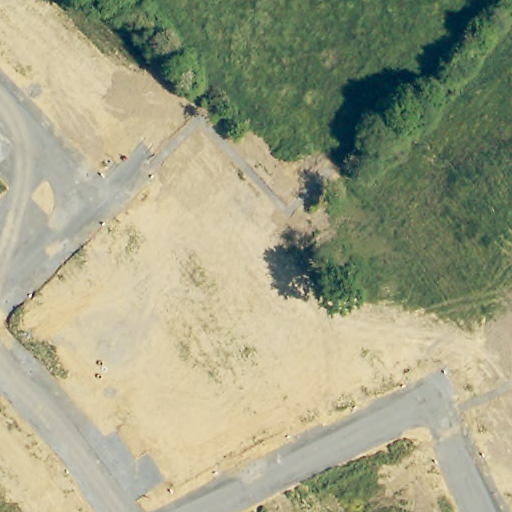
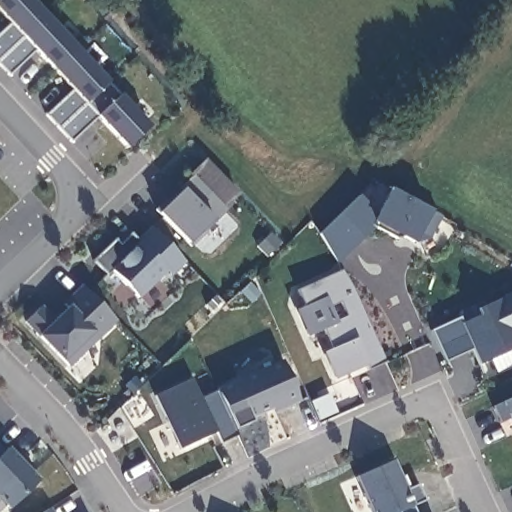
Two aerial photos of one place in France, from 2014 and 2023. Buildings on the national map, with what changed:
new [(151,126),(128,147),(100,119),(73,141),(49,115),(72,90),(36,50),(10,76),(0,64),(0,36),(11,25),(0,14),(0,0),(34,0),(151,126)]
new [(227,209),(193,245),(190,242),(159,212),(183,187),(194,175),(227,209)]
new [(430,239),(414,243),(376,225),(340,263),(321,235),(359,194),(378,214),(390,190),(431,210),(442,215),(430,239)]
new [(129,229),(137,237),(150,225),(185,261),(171,275),(167,270),(140,297),(114,268),(108,273),(95,257),(129,229)]
new [(368,370),(366,365),(337,379),(326,351),(333,347),(327,328),(311,335),(300,310),(307,306),(300,289),(344,269),(389,361),(368,370)]
new [(72,368),(65,363),(41,335),(28,322),(44,305),(57,317),(71,302),(84,285),(122,320),(72,368)]
new [(474,349),(446,361),(431,330),(512,292),(512,349),(480,363),(474,349)]
new [(278,411),(275,406),(252,418),(234,380),(282,356),(303,400),(278,411)]
new [(222,443),(216,431),(180,447),(158,395),(193,378),(203,398),(219,390),(239,435),(222,443)]
new [(503,423),(495,405),(502,402),(512,398),(512,423),(510,420),(503,423)]
new [(8,450),(11,447),(41,479),(10,506),(0,496),(0,442),(8,450)]
new [(47,512),(53,508),(56,512),(47,512)]

